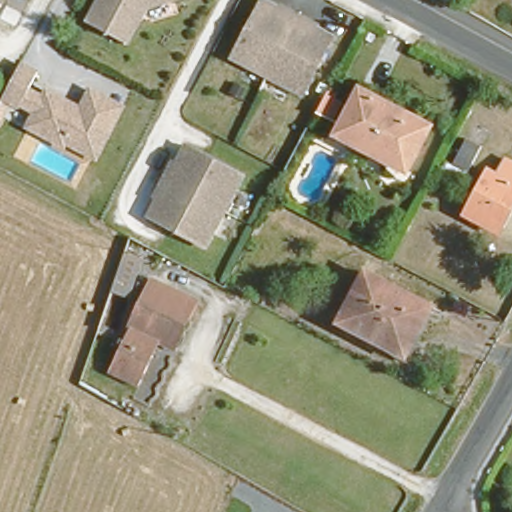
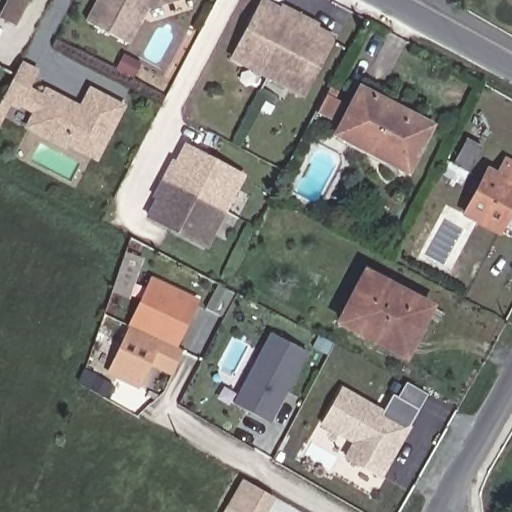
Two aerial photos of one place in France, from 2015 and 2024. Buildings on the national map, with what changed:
unchanged [(173,0),(151,7),(133,43),(87,20),(98,0),(173,0)]
unchanged [(335,38),(301,97),(234,59),(266,0),(335,38)]
unchanged [(43,74),(30,97),(45,105),(49,98),(72,110),(72,118),(80,122),(96,89),(128,105),(101,156),(70,140),(68,144),(30,125),(39,108),(25,101),(23,103),(8,95),(17,78),(25,64),(43,74)]
unchanged [(337,128),(360,84),(430,122),(407,164),(337,128)]
unchanged [(459,181),(433,170),(455,129),(480,140),(459,181)]
unchanged [(243,178),(205,247),(146,215),(185,146),(243,178)]
unchanged [(467,210),(491,166),(503,173),(512,158),(512,207),(500,227),(467,210)]
unchanged [(140,251),(126,294),(106,287),(121,246),(140,251)]
unchanged [(340,318),(366,269),(430,303),(405,352),(340,318)]
unchanged [(136,381),(111,367),(132,327),(130,325),(153,280),(185,296),(195,301),(171,346),(163,342),(157,338),(136,381)]
new [(275,330),(311,350),(271,420),(235,401),(275,330)]
new [(384,412),(395,394),(403,399),(411,386),(431,395),(422,410),(382,477),(346,456),(355,441),(323,422),(345,388),(384,412)]
new [(246,481),(275,497),(266,512),(228,512),(231,506),(246,481)]

